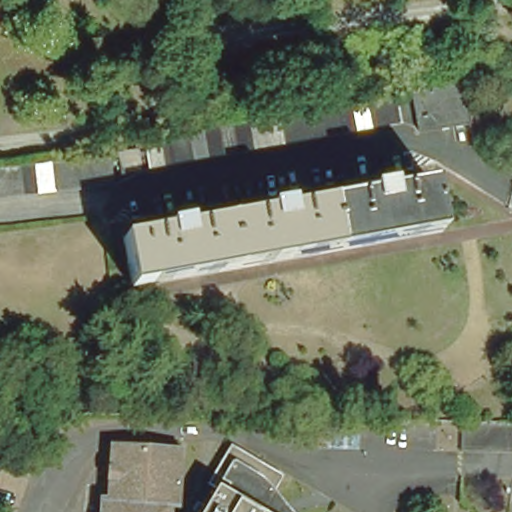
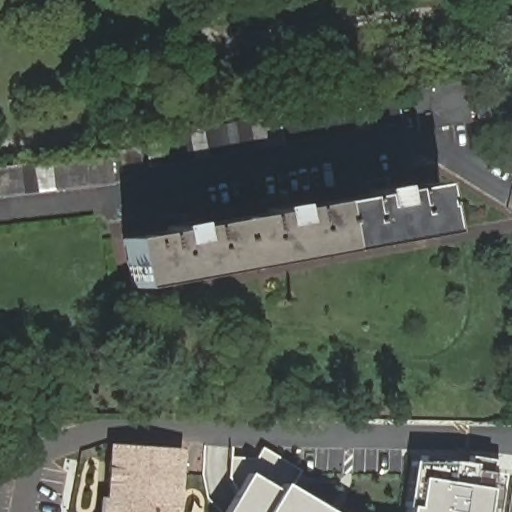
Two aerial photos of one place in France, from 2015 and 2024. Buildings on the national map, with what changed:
unchanged [(472,121),(420,131),(413,90),(417,89),(464,81),(472,121)]
unchanged [(162,137),(397,93),(402,123),(150,168),(145,140),(162,137)]
unchanged [(139,150),(142,170),(122,174),(118,153),(139,150)]
unchanged [(114,185),(0,199),(0,168),(110,155),(114,185)]
unchanged [(169,232),(169,227),(190,223),(191,228),(271,214),(270,208),(290,205),(291,210),(371,196),(370,190),(390,187),(392,191),(432,184),(441,233),(132,290),(122,240),(169,232)]
demolished [(225,450),(276,479),(258,510),(262,512),(203,512),(212,495),(202,490),(225,450)]
new [(411,456),(455,450),(511,459),(504,512),(404,512),(411,456)]
unchanged [(174,458),(172,510),(165,511),(165,512),(100,512),(100,507),(109,507),(111,455),(174,458)]
new [(331,512),(221,512),(247,468),(331,512)]

